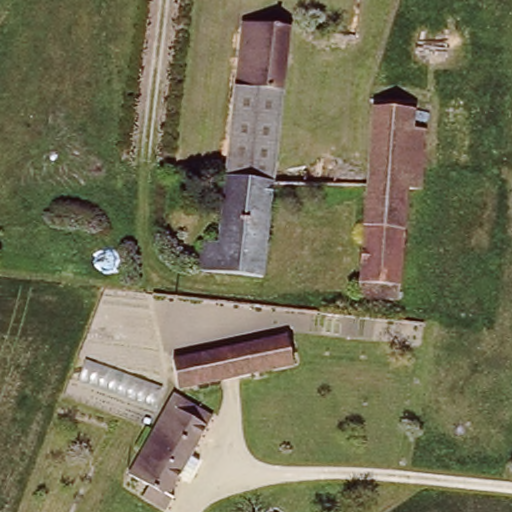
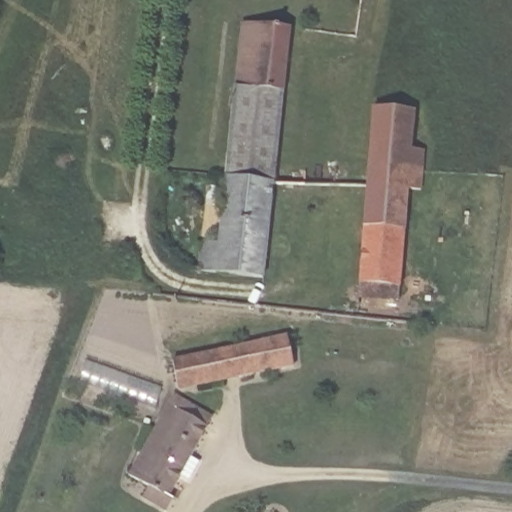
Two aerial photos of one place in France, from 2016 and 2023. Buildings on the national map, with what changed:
unchanged [(291,29),(272,188),(225,182),(245,23),(291,29)]
unchanged [(427,112),(422,161),(421,171),(370,166),(375,107),(427,112)]
unchanged [(421,171),(416,232),(408,231),(402,302),(357,297),(367,188),(370,166),(421,171)]
unchanged [(272,188),(263,255),(216,248),(225,182),(272,188)]
unchanged [(263,255),(260,280),(197,273),(200,247),(216,248),(263,255)]
unchanged [(290,325),(298,368),(273,371),(268,341),(267,328),(290,325)]
unchanged [(268,341),(273,371),(180,386),(177,355),(268,341)]
unchanged [(179,401),(214,422),(167,501),(175,505),(171,512),(160,512),(140,501),(147,488),(132,479),(179,401)]

